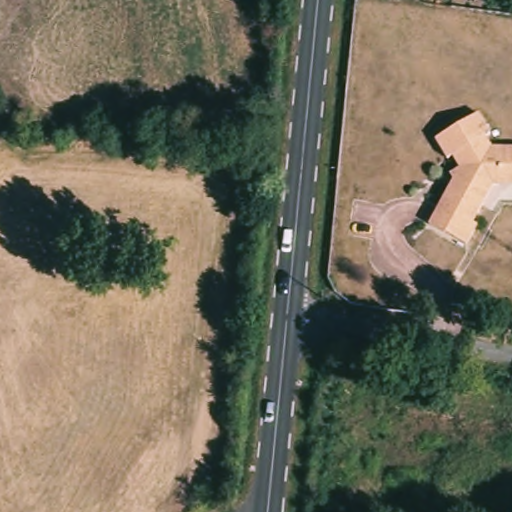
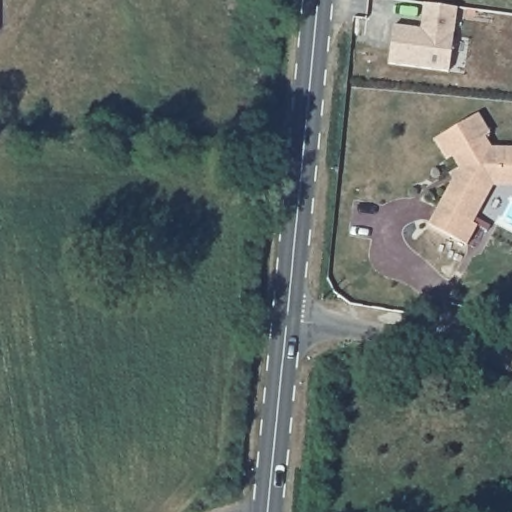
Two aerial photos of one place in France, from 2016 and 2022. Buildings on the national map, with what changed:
new [(396,21),(421,25),(425,0),(432,0),(459,4),(450,67),(390,59),(396,21)]
unchanged [(478,225),(483,227),(477,248),(436,237),(449,191),(455,188),(458,177),(446,165),(441,169),(425,152),(460,117),(476,134),(472,138),(482,148),(512,142),(512,180),(489,184),(478,225)]

